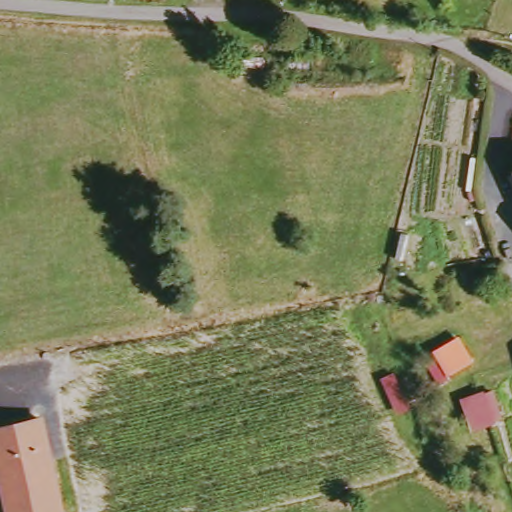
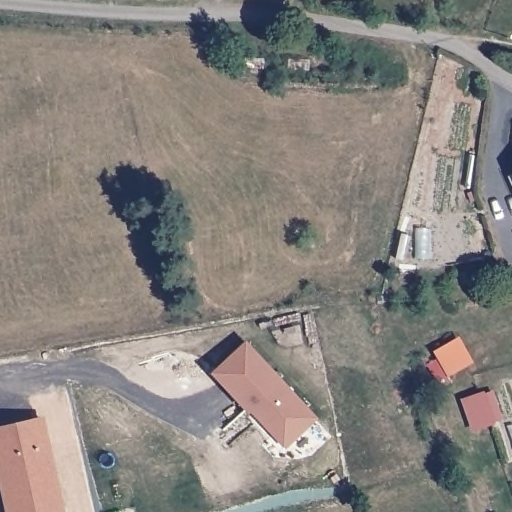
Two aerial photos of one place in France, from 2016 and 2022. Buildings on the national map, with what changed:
new [(250,412),(248,413),(212,372),(245,340),(317,418),(285,447),(250,412)]
unchanged [(435,377),(420,354),(437,343),(450,362),(435,377)]
unchanged [(491,391),(500,424),(468,434),(460,401),(491,391)]
unchanged [(5,500),(12,499),(3,460),(0,461),(0,431),(42,422),(47,449),(44,451),(47,462),(50,461),(62,512),(8,512),(5,500)]

